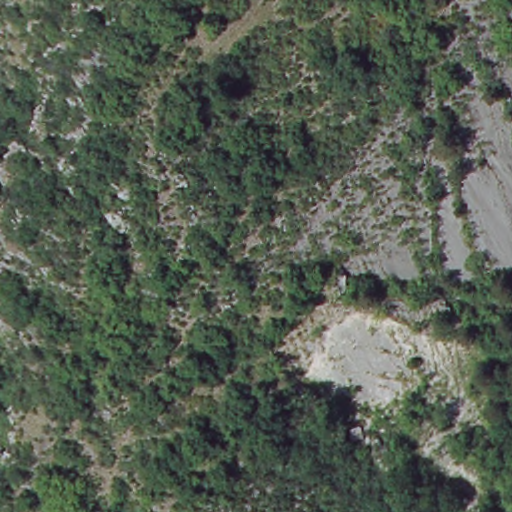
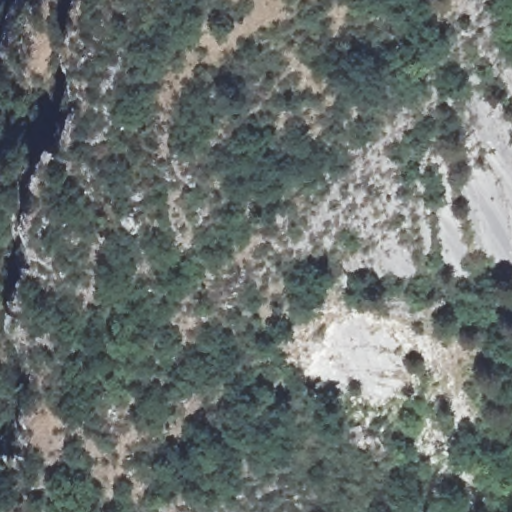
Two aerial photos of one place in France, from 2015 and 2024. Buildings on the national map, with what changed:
[]

